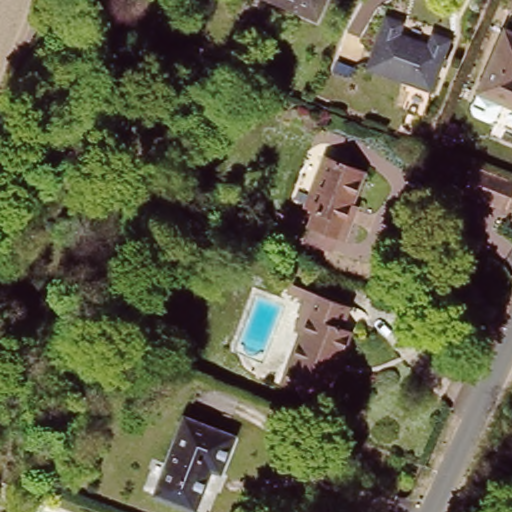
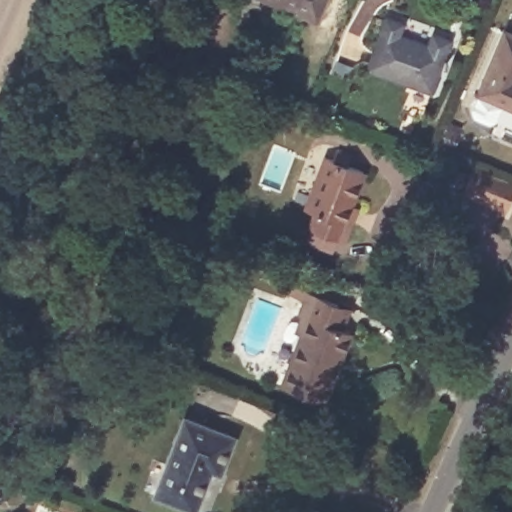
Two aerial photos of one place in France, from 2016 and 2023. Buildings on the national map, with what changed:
unchanged [(257,0),(324,0),(315,24),(257,0)]
unchanged [(395,23),(393,35),(421,45),(425,32),(443,39),(423,92),(361,68),(380,17),(395,23)]
unchanged [(512,32),(512,105),(471,87),(497,26),(512,32)]
unchanged [(349,240),(315,226),(320,214),(310,210),(315,197),(315,193),(330,157),(337,160),(340,152),(354,157),(351,164),(367,171),(355,203),(361,206),(355,223),(349,240)]
unchanged [(512,178),(512,192),(506,207),(477,197),(488,169),(512,178)]
unchanged [(388,293),(393,281),(425,293),(420,305),(388,293)]
unchanged [(298,313),(303,300),(286,293),(290,285),(335,302),(348,307),(340,327),(350,332),(321,400),(281,383),(305,316),(298,313)]
unchanged [(407,317),(388,309),(390,305),(376,300),(378,291),(412,305),(407,317)]
unchanged [(208,465),(193,505),(153,490),(182,413),(232,433),(218,468),(208,465)]

